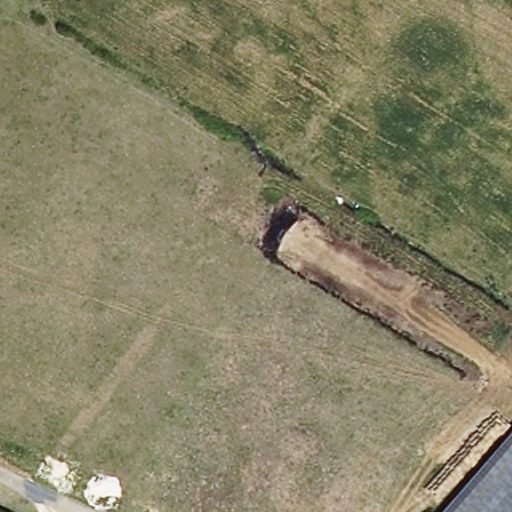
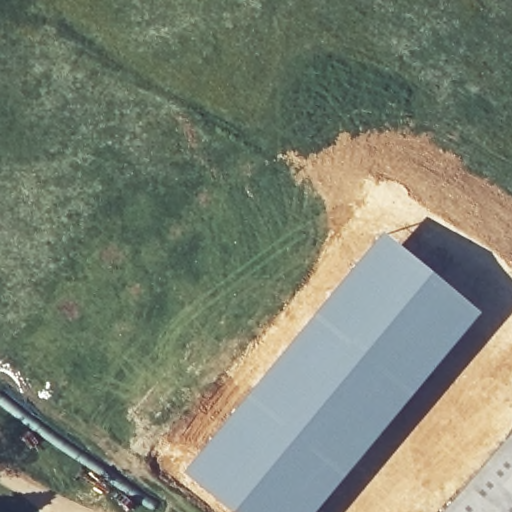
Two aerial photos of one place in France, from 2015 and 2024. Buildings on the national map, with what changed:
new [(452,286),(481,312),(314,512),(231,512),(182,471),(383,231),(452,286)]
unchanged [(441,512),(512,431),(512,512),(441,512)]

